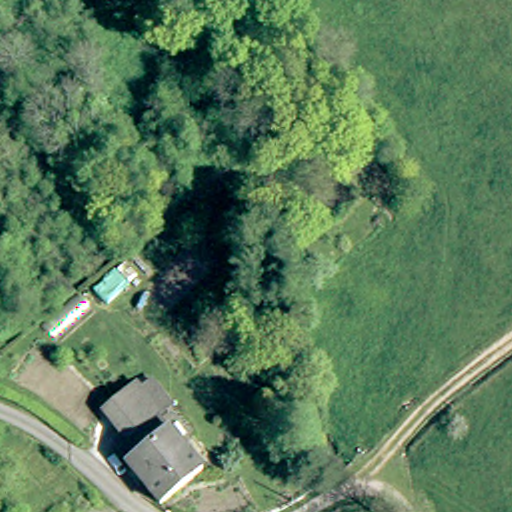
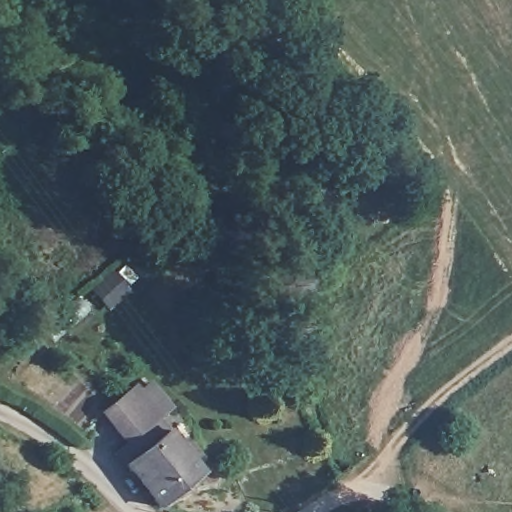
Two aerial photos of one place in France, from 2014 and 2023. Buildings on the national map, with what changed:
unchanged [(136,387),(141,395),(155,385),(174,410),(161,420),(208,484),(171,512),(160,512),(121,460),(135,450),(105,410),(136,387)]

